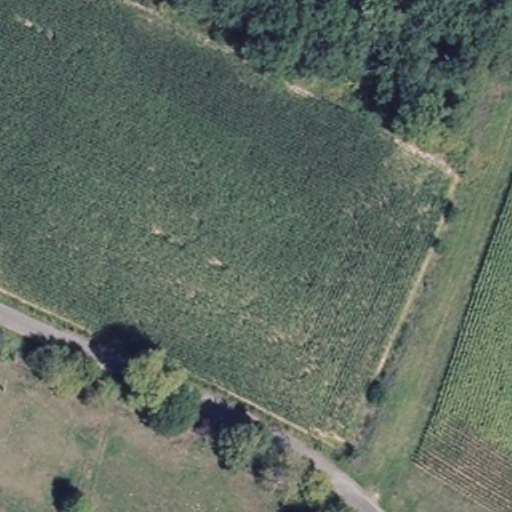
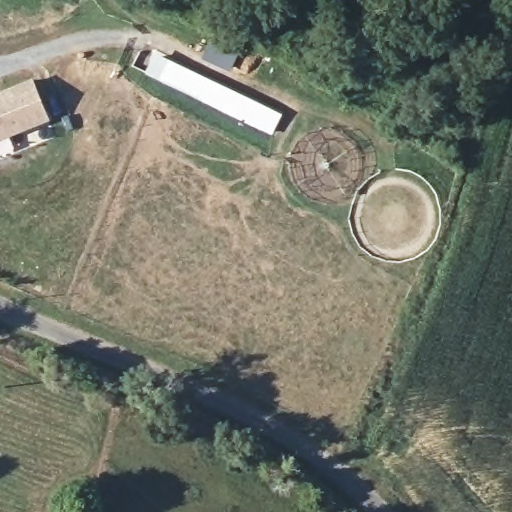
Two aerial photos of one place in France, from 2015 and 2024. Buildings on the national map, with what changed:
new [(209,37),(236,50),(230,64),(202,51),(209,37)]
new [(152,54),(278,114),(272,129),(146,68),(152,54)]
new [(52,120),(0,141),(0,90),(34,76),(52,120)]

